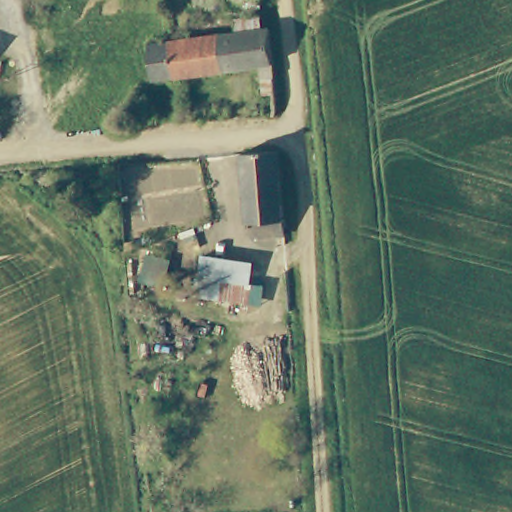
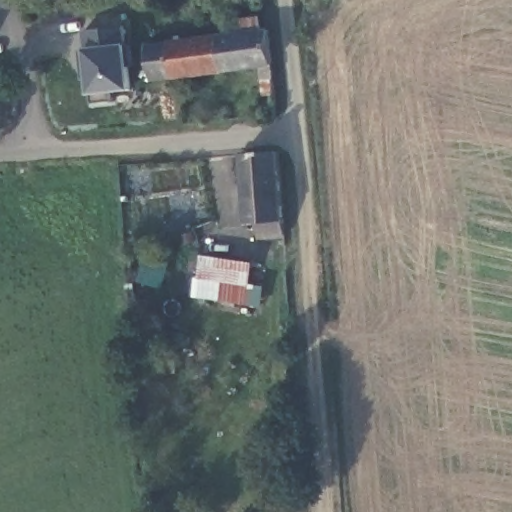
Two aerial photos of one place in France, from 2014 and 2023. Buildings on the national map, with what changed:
unchanged [(260,73),(176,82),(152,84),(149,49),(172,44),(239,34),(237,19),(261,16),(263,30),(267,29),(273,83),(275,102),(263,104),(261,84),(260,73)]
new [(125,25),(126,44),(131,89),(92,94),(87,48),(85,30),(125,25)]
unchanged [(267,238),(265,226),(257,228),(245,157),(278,150),(291,234),(288,234),(267,238)]
unchanged [(203,264),(249,265),(247,305),(200,303),(203,264)]

